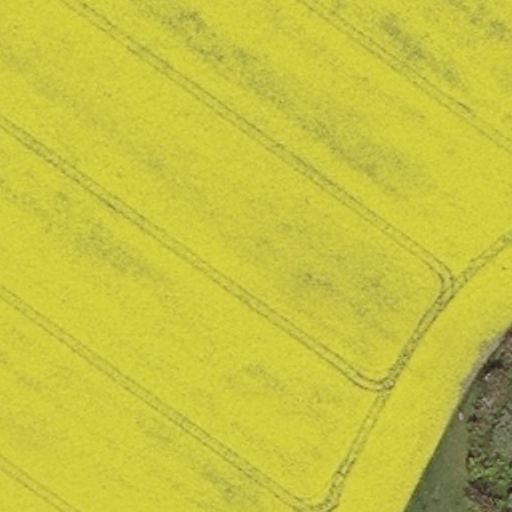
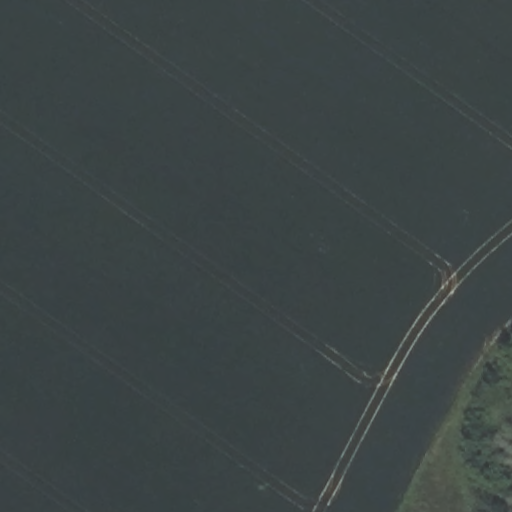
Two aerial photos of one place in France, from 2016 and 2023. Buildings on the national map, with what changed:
[]

